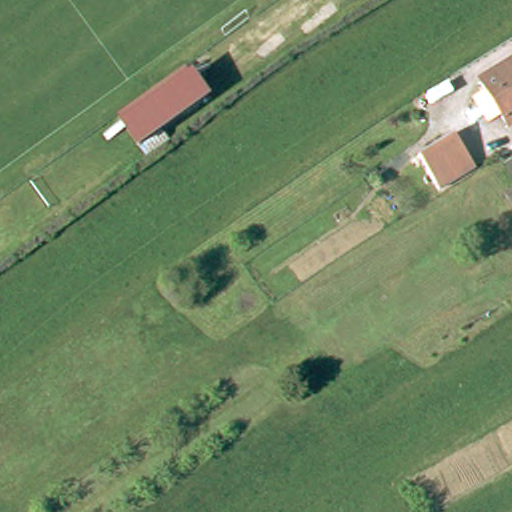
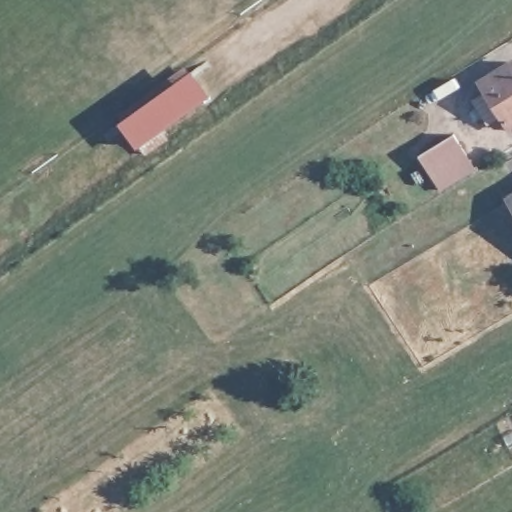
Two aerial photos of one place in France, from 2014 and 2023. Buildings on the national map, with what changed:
unchanged [(495,125),(481,101),(495,92),(489,85),(512,72),(512,125),(507,117),(495,125)]
unchanged [(203,104),(137,147),(120,121),(186,77),(203,104)]
unchanged [(423,163),(456,144),(477,179),(443,200),(423,163)]

